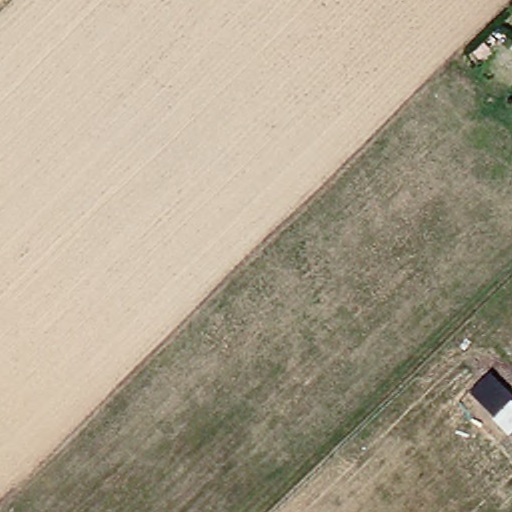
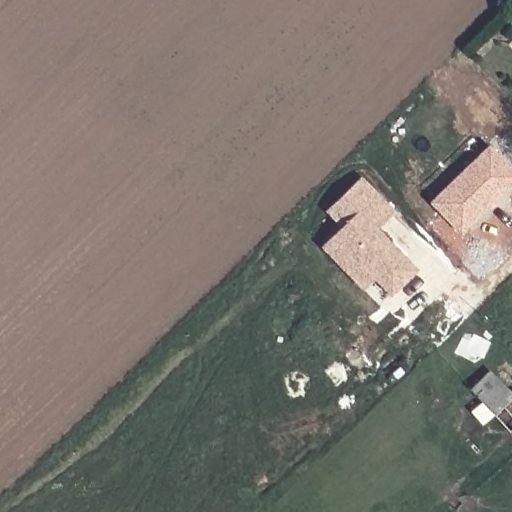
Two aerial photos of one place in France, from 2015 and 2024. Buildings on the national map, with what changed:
new [(428,204),(490,145),(512,168),(512,187),(460,236),(428,204)]
new [(378,227),(421,270),(391,297),(375,280),(362,292),(320,247),(340,229),(324,212),(361,176),(395,214),(378,227)]
new [(496,416),(483,427),(470,412),(483,402),(470,389),(490,371),(512,393),(512,431),(510,433),(496,416)]

